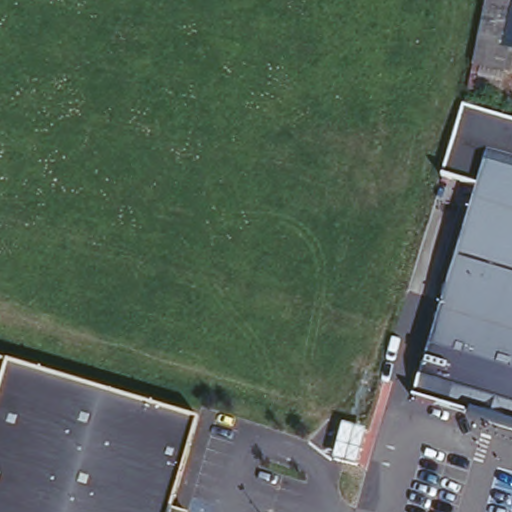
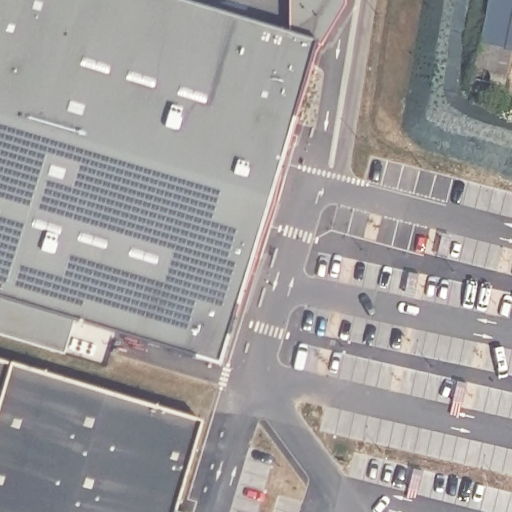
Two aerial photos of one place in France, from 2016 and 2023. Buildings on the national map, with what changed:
new [(211,352),(69,311),(59,344),(0,326),(0,0),(230,0),(306,21),(211,352)]
unchanged [(511,57),(502,101),(475,94),(477,87),(471,86),(487,0),(512,0),(512,57),(511,57)]
demolished [(512,121),(512,425),(415,396),(480,188),(444,179),(465,107),(512,121)]
unchanged [(177,503),(193,508),(192,512),(0,512),(0,351),(206,412),(177,503)]
new [(343,431),(367,436),(358,473),(335,467),(343,431)]

